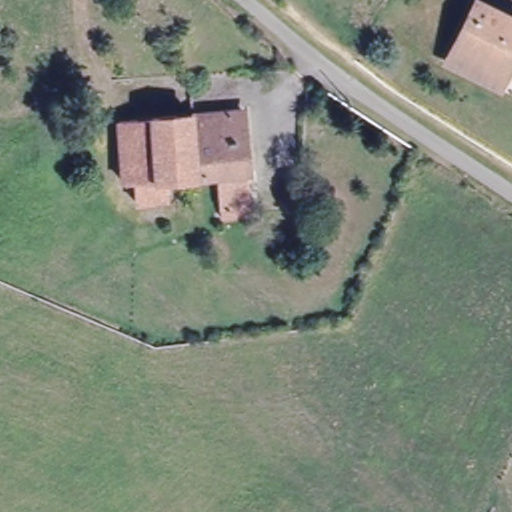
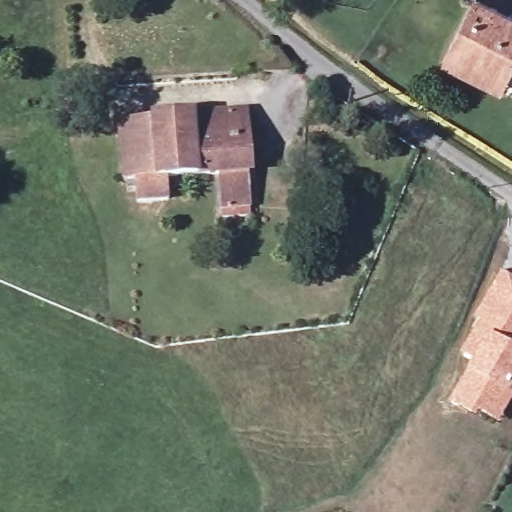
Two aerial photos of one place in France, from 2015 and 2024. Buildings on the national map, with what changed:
unchanged [(512,23),(512,55),(502,75),(450,51),(472,4),(512,23)]
unchanged [(495,92),(442,65),(450,51),(502,75),(495,92)]
unchanged [(143,197),(140,175),(130,175),(122,114),(247,105),(254,164),(221,167),(170,172),(172,194),(143,197)]
unchanged [(258,200),(224,203),(221,167),(254,164),(256,180),(258,200)]
new [(459,353),(484,300),(501,270),(512,276),(512,395),(497,425),(478,415),(475,420),(447,403),(471,361),(459,353)]

